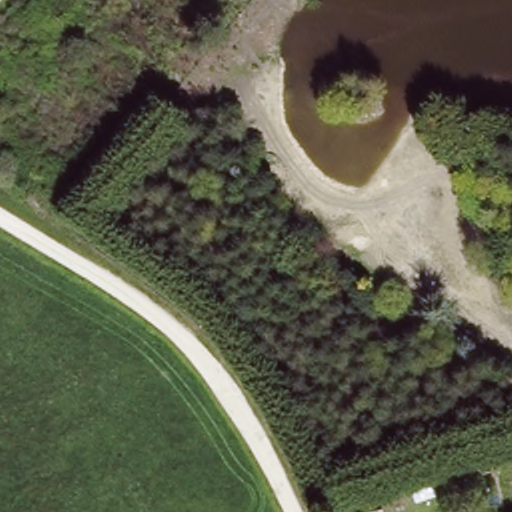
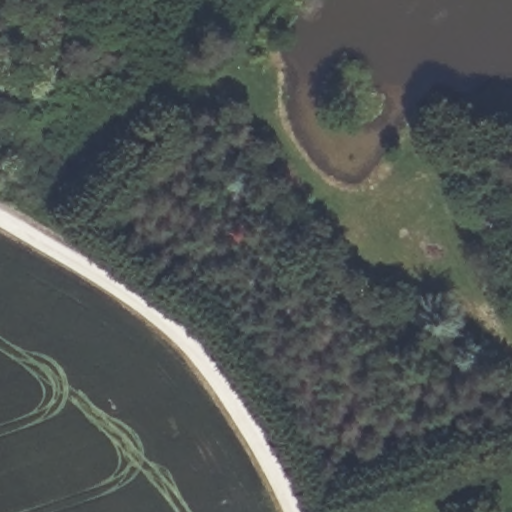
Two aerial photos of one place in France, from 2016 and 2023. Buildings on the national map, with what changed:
unchanged [(456,425),(460,437),(440,444),(436,432),(456,425)]

